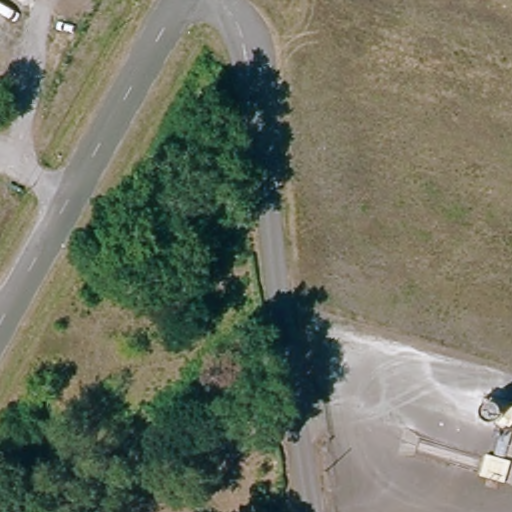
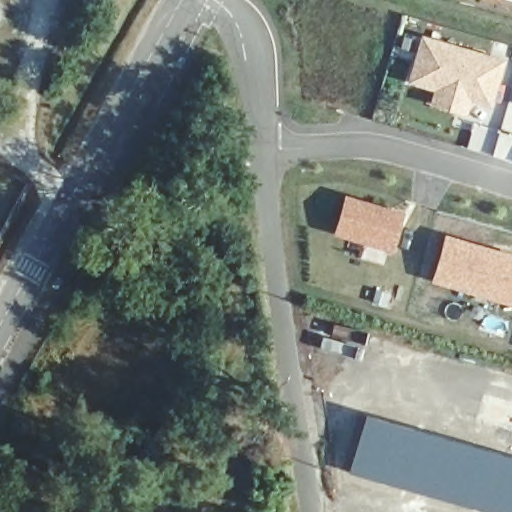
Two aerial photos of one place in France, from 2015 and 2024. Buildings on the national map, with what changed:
new [(504,2),(499,0),(504,0),(504,2)]
new [(421,33),(507,58),(492,111),(472,105),(467,118),(427,105),(431,91),(405,84),(421,33)]
new [(512,102),(512,145),(507,160),(492,155),(508,101),(512,102)]
new [(343,194),(407,211),(393,254),(331,234),(343,194)]
new [(512,254),(512,306),(429,282),(443,234),(512,254)]
unchanged [(486,408),(489,403),(497,402),(512,406),(512,427),(492,422),(488,416),(486,408)]
new [(464,442),(512,454),(512,512),(483,512),(348,472),(366,413),(464,442)]
unchanged [(116,512),(44,512),(50,474),(122,485),(116,512)]

